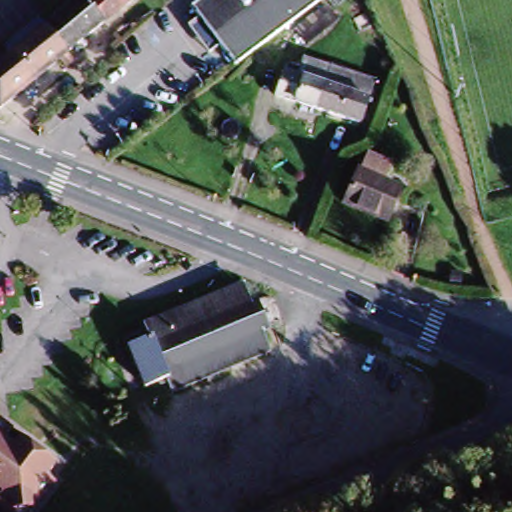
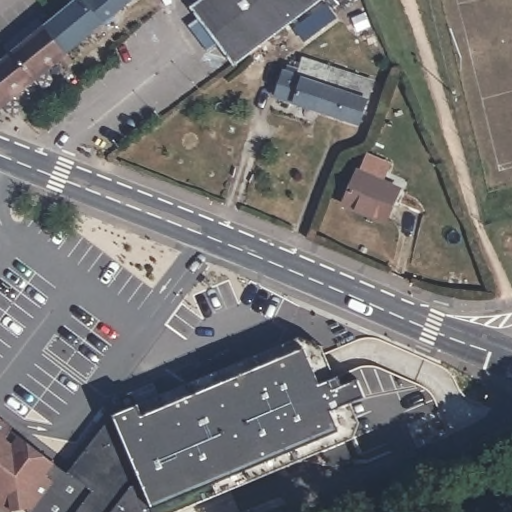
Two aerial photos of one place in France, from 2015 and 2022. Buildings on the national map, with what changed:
unchanged [(0,104),(0,67),(21,48),(14,40),(41,17),(48,25),(78,0),(134,0),(70,53),(76,61),(70,66),(64,58),(3,108),(0,104)]
unchanged [(238,66),(195,7),(204,0),(326,0),(238,66)]
unchanged [(341,20),(311,45),(300,30),(330,6),(341,20)]
unchanged [(318,115),(275,101),(283,78),(298,82),(304,64),(332,73),(318,115)]
unchanged [(374,87),(359,128),(318,115),(332,73),(374,87)]
unchanged [(371,151),(399,162),(392,180),(363,169),(371,151)]
unchanged [(399,189),(386,222),(343,204),(358,171),(399,189)]
demolished [(171,378),(150,387),(133,346),(154,337),(149,324),(246,285),(253,303),(260,300),(272,329),(266,332),(274,352),(176,391),(171,378)]
new [(70,470),(115,414),(139,406),(299,336),(324,345),(339,375),(344,385),(358,379),(365,396),(351,402),(360,423),(354,436),(174,512),(77,512),(94,489),(70,470)]
unchanged [(20,449),(38,447),(59,463),(50,475),(58,481),(34,512),(16,512),(0,500),(6,492),(0,487),(0,434),(20,449)]

